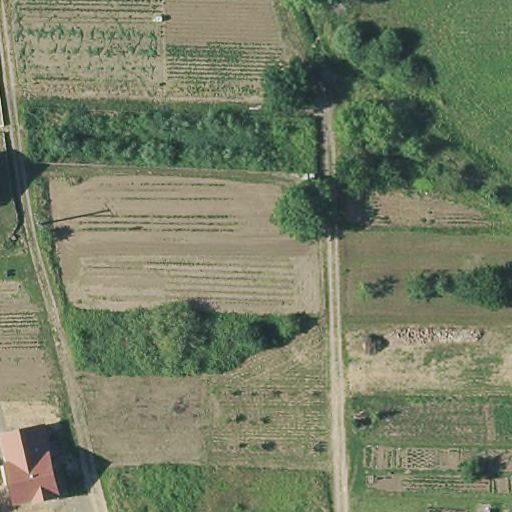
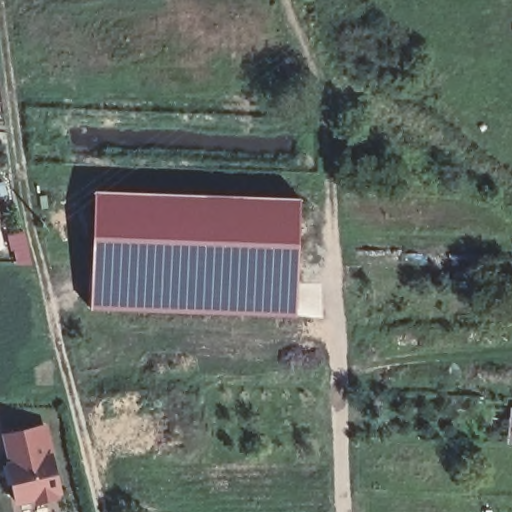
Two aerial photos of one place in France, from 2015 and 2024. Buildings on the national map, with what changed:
new [(302,199),(298,317),(91,309),(92,191),(302,199)]
unchanged [(45,424),(63,497),(33,504),(33,500),(15,504),(5,464),(1,433),(45,424)]

